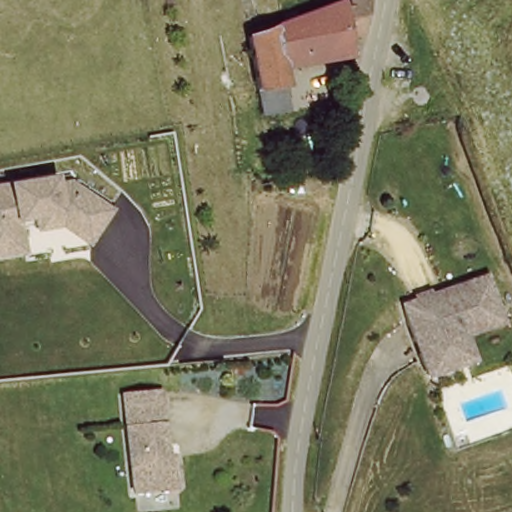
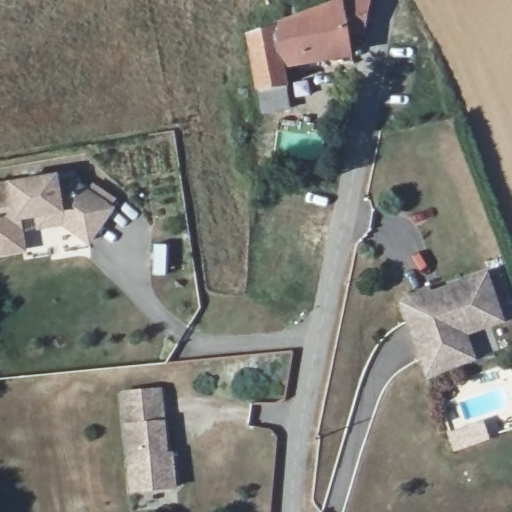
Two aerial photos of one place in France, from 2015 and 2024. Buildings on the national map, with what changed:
unchanged [(363,31),(348,29),(352,46),(285,58),(292,98),(263,103),(259,77),(251,27),(324,0),(370,0),(363,31)]
unchanged [(56,189),(69,187),(110,215),(87,248),(74,238),(72,225),(60,217),(17,225),(23,256),(0,259),(0,191),(55,182),(56,189)]
unchanged [(434,323),(446,358),(420,367),(395,296),(477,267),(490,303),(434,323)]
unchanged [(434,323),(490,303),(494,313),(457,326),(465,351),(446,358),(434,323)]
unchanged [(175,465),(177,486),(135,490),(126,393),(163,389),(169,453),(174,452),(175,465)]

